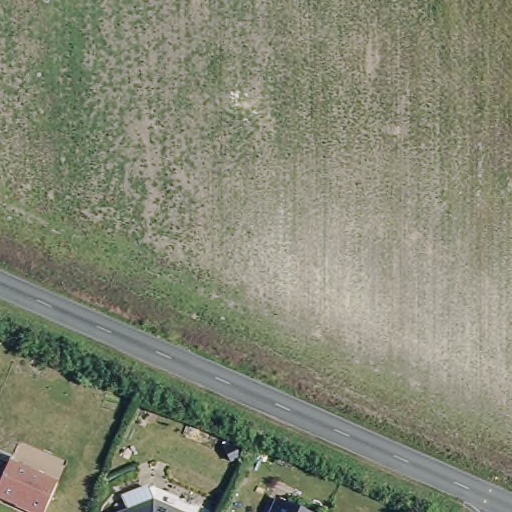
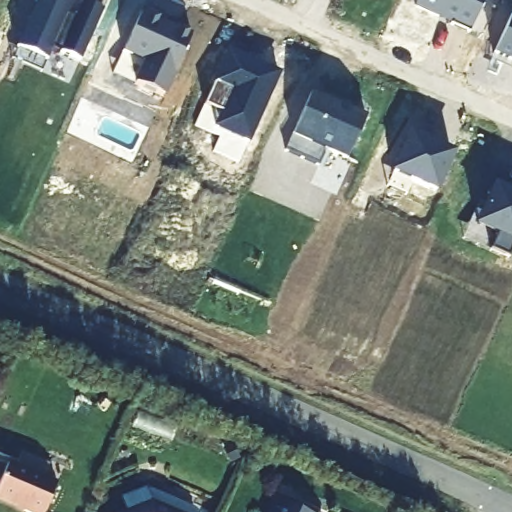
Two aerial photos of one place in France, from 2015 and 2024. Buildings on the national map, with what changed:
new [(15,48),(37,0),(75,0),(68,15),(75,18),(84,0),(103,10),(81,61),(52,48),(47,60),(42,70),(13,56),(17,48),(15,48)]
new [(483,0),(470,31),(414,7),(417,0),(483,0)]
new [(112,73),(122,51),(142,12),(192,34),(166,95),(135,81),(112,73)]
new [(494,54),(512,15),(512,62),(494,54)]
new [(213,128),(219,114),(203,108),(229,51),(280,73),(248,144),(213,128)]
new [(368,110),(349,151),(328,141),(321,158),(287,142),(314,85),(368,110)]
new [(409,131),(454,153),(436,194),(411,183),(406,194),(387,184),(392,174),(390,173),(409,131)]
new [(490,250),(462,239),(477,204),(482,205),(492,184),(512,193),(512,248),(507,258),(490,250)]
new [(239,457),(230,461),(224,447),(232,443),(239,457)]
unchanged [(22,503),(1,493),(17,459),(62,481),(47,512),(38,512),(22,504),(22,503)]
unchanged [(157,493),(193,512),(128,512),(157,493)]
unchanged [(277,498),(309,512),(271,512),(277,498)]

